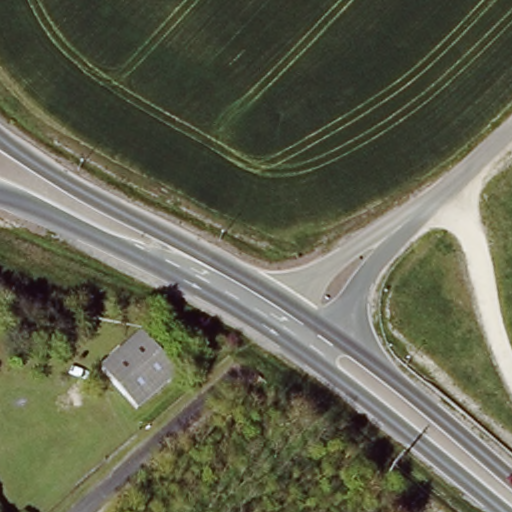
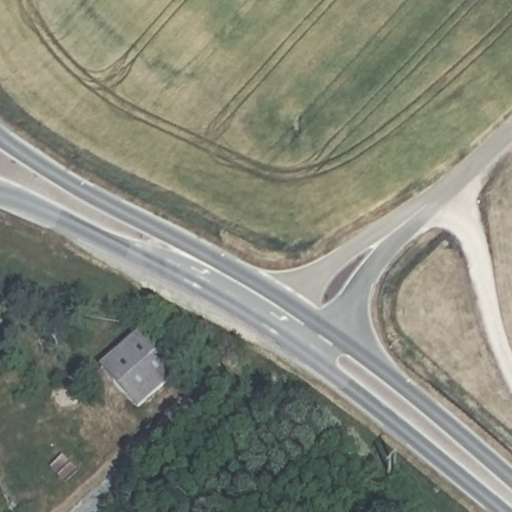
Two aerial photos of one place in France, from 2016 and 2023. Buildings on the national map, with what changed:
unchanged [(104,373),(144,336),(177,374),(138,411),(104,373)]

